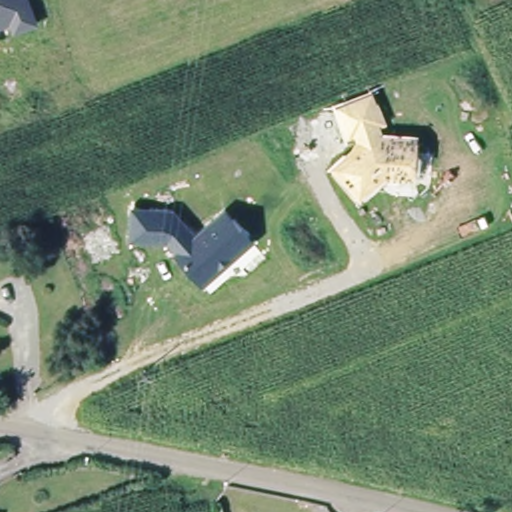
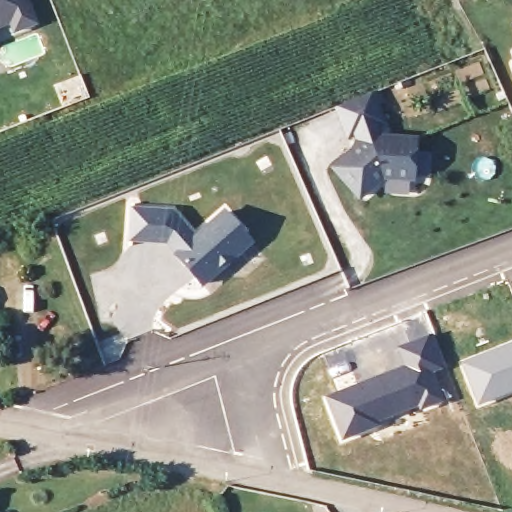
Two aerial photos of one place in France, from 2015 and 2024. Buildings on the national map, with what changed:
unchanged [(36,19),(14,28),(11,18),(0,23),(0,0),(29,0),(36,19)]
new [(512,48),(512,58),(509,49),(512,48)]
new [(512,70),(508,60),(512,58),(512,70)]
unchanged [(375,84),(387,115),(381,117),(385,129),(419,131),(418,169),(387,168),(365,188),(339,160),(358,143),(360,145),(363,142),(354,133),(353,128),(345,131),(333,101),(375,84)]
new [(178,251),(184,245),(177,238),(150,236),(132,235),(133,205),(152,206),(173,207),(196,234),(227,208),(242,226),(252,237),(241,247),(203,280),(178,251)]
new [(403,364),(397,346),(433,332),(458,398),(401,416),(341,441),(324,396),(403,364)]
new [(512,392),(476,406),(460,361),(512,342),(512,392)]

